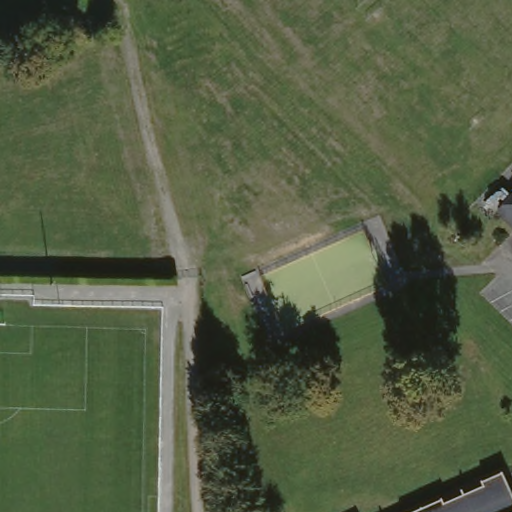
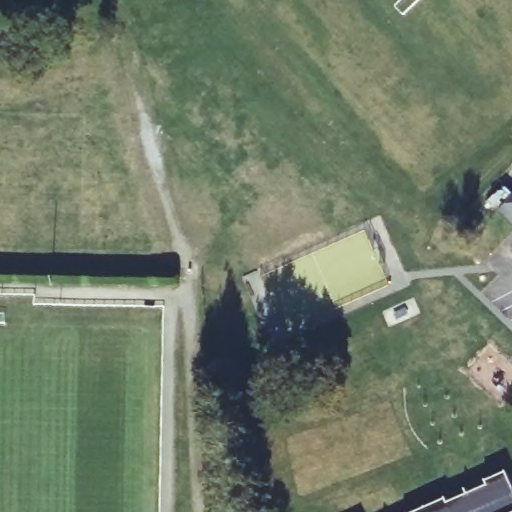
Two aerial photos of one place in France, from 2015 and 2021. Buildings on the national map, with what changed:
unchanged [(512,191),(512,228),(493,208),(512,191)]
unchanged [(512,494),(512,512),(424,512),(503,475),(512,494)]

